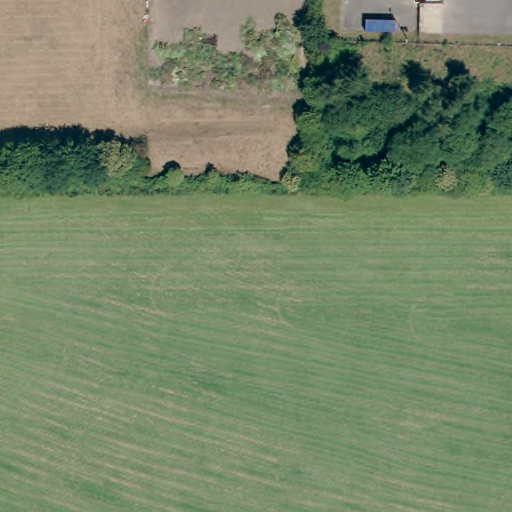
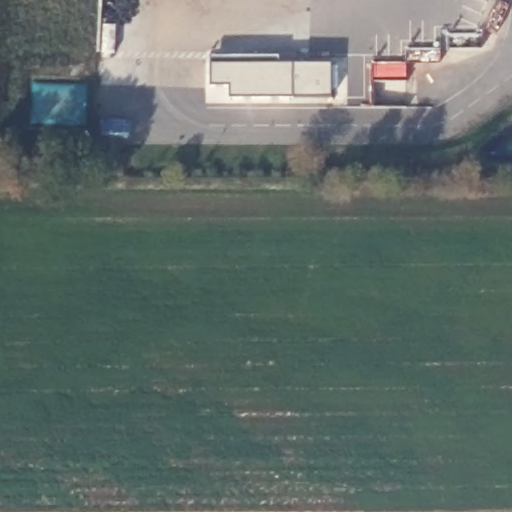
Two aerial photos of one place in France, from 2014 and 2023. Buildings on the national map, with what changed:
new [(211,56),(279,57),(280,64),(293,64),(331,64),(331,97),(293,97),(230,97),(230,86),(211,86),(211,63),(211,56)]

